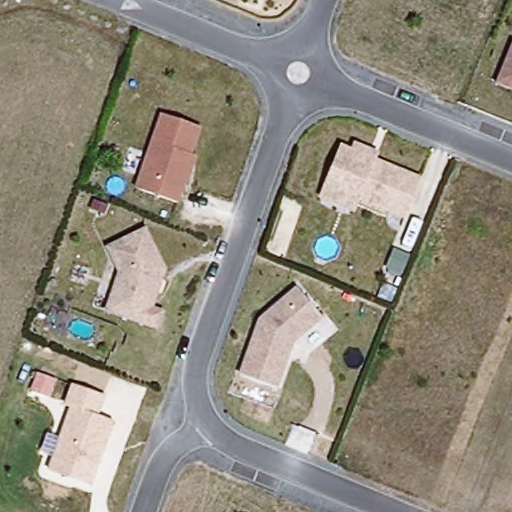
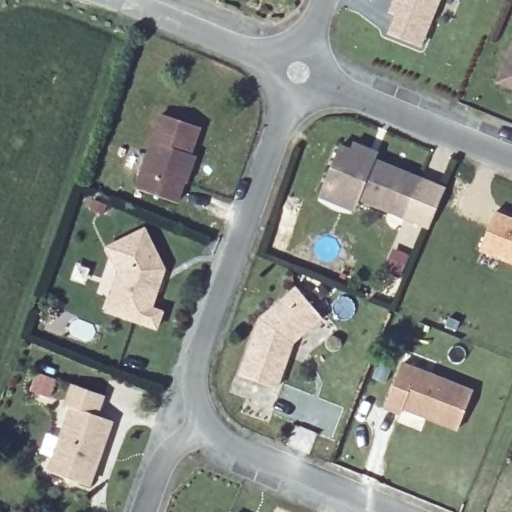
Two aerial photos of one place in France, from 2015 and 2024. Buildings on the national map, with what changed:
new [(389,13),(394,0),(438,0),(427,28),(420,47),(388,34),(395,16),(389,13)]
unchanged [(512,42),(512,90),(496,84),(512,42)]
unchanged [(191,170),(186,183),(185,182),(178,203),(137,189),(163,114),(200,127),(191,154),(196,156),(191,170)]
unchanged [(340,146),(351,151),(354,144),(378,154),(376,161),(421,179),(405,217),(360,199),(355,211),(320,196),(325,184),(340,146)]
new [(512,217),(512,264),(478,251),(495,211),(512,217)]
unchanged [(152,309),(163,312),(157,329),(106,311),(120,273),(109,248),(145,230),(165,270),(162,277),(157,294),(152,309)]
unchanged [(257,318),(295,285),(324,319),(294,342),(280,389),(238,377),(257,318)]
new [(401,364),(471,393),(456,430),(402,408),(400,414),(383,407),(401,364)]
unchanged [(99,417),(114,421),(92,485),(49,470),(69,408),(65,407),(70,386),(105,396),(99,417)]
new [(295,423),(317,433),(308,454),(285,443),(295,423)]

